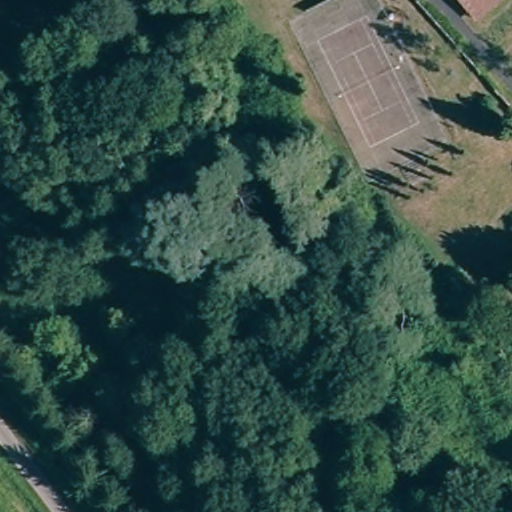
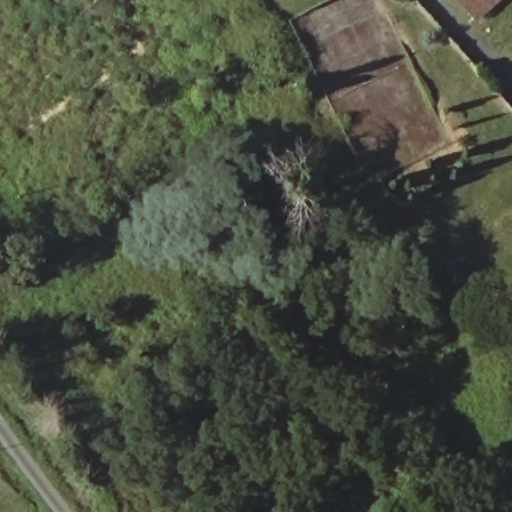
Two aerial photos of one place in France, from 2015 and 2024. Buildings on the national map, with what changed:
unchanged [(463,0),(498,0),(480,19),(463,0)]

